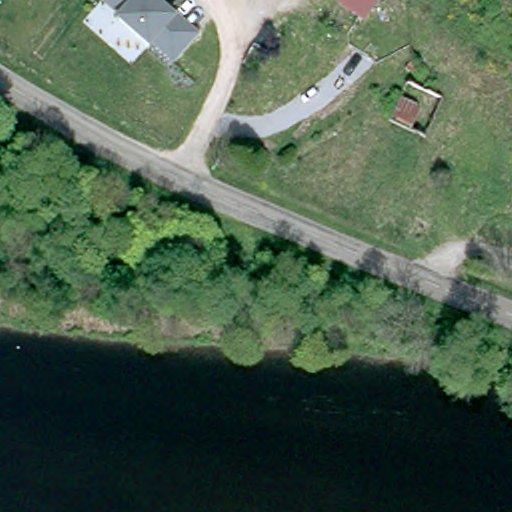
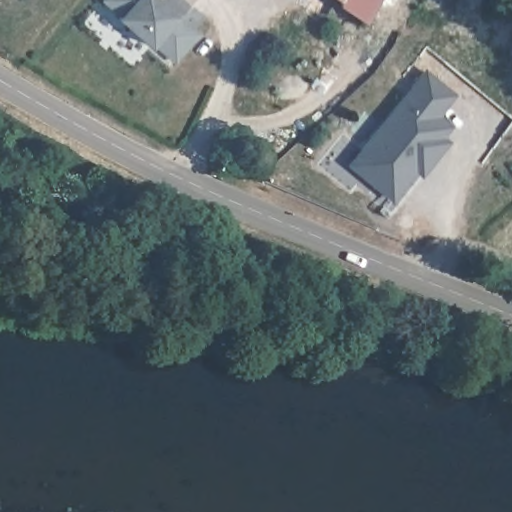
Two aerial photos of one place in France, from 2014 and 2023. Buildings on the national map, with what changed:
unchanged [(175,15),(177,12),(201,36),(173,65),(101,2),(103,0),(158,0),(175,15)]
unchanged [(366,24),(333,9),(339,0),(381,0),(366,24)]
new [(458,95),(441,116),(454,127),(444,137),(449,142),(421,176),(415,172),(391,202),(344,165),(425,69),(458,95)]

